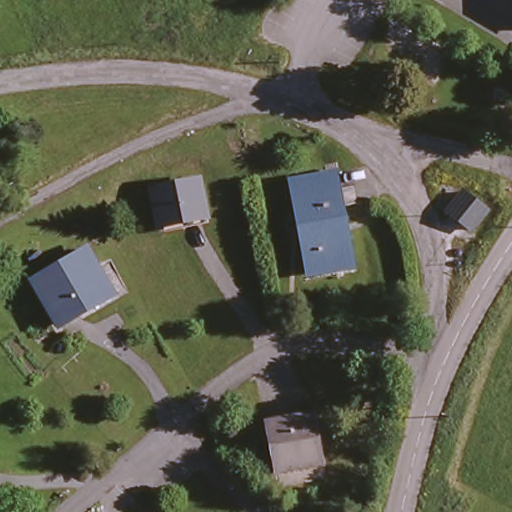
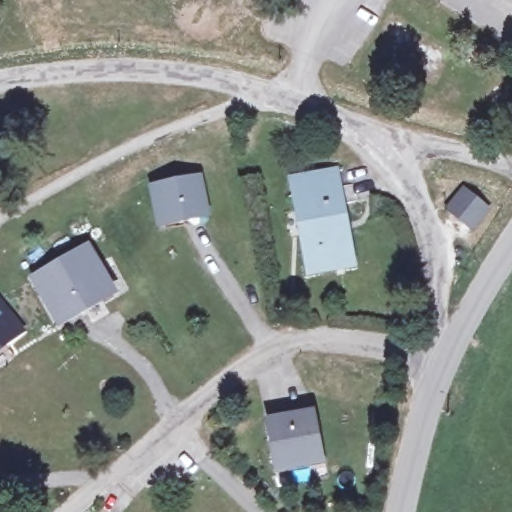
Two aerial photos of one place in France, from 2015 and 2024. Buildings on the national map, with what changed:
unchanged [(342,166),(344,181),(359,179),(362,200),(347,203),(354,261),(311,266),(297,173),(342,166)]
unchanged [(202,181),(209,212),(174,219),(169,187),(202,181)]
unchanged [(482,209),(465,228),(443,209),(459,189),(482,209)]
unchanged [(84,249),(111,296),(66,321),(39,275),(84,249)]
new [(28,330),(0,350),(0,296),(28,330)]
unchanged [(316,419),(326,460),(284,471),(275,430),(316,419)]

